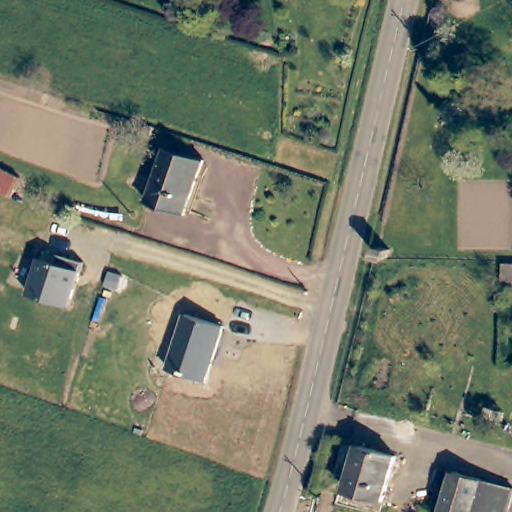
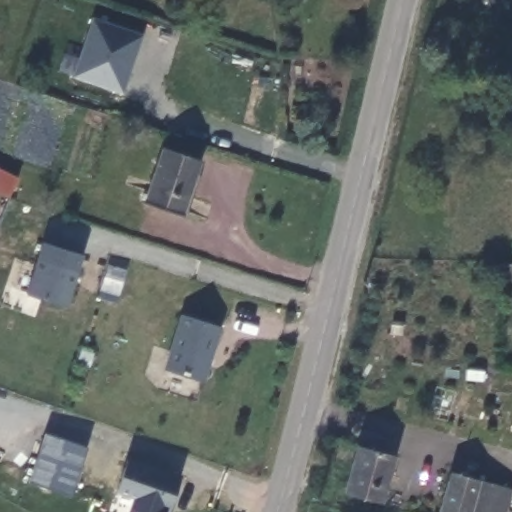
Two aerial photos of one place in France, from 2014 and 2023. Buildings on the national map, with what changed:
new [(95,18),(144,35),(125,93),(74,77),(95,18)]
unchanged [(200,162),(182,214),(144,201),(162,149),(200,162)]
unchanged [(0,174),(0,171),(1,172),(0,174)]
unchanged [(41,260),(56,265),(59,256),(85,264),(72,309),(31,297),(41,260)]
unchanged [(493,288),(493,271),(512,272),(512,288),(493,288)]
unchanged [(183,316),(223,327),(205,381),(164,367),(183,316)]
new [(71,495),(31,482),(47,432),(90,446),(71,495)]
unchanged [(342,492),(355,448),(392,460),(379,503),(342,492)]
new [(130,512),(135,497),(115,490),(127,458),(185,475),(172,512),(130,512)]
unchanged [(439,512),(449,476),(510,491),(504,512),(439,512)]

